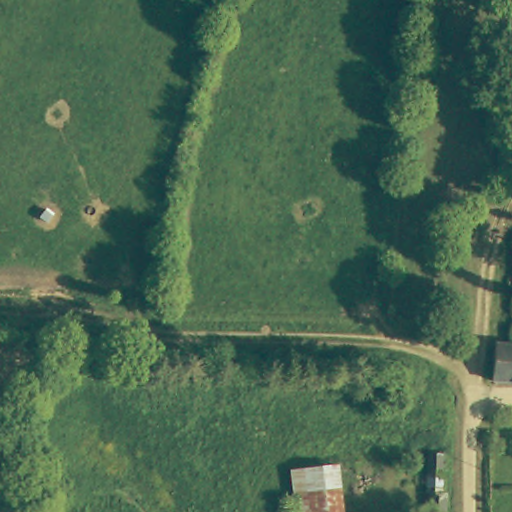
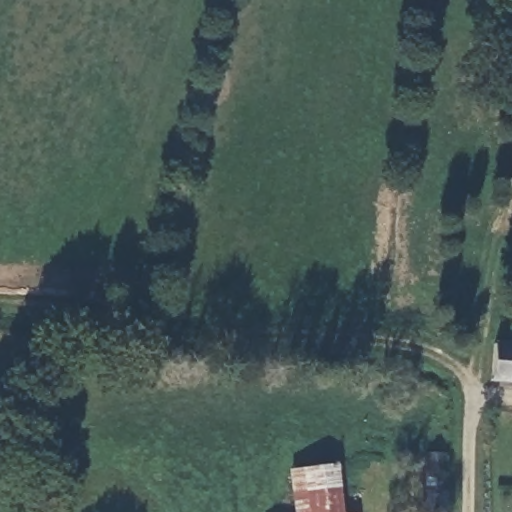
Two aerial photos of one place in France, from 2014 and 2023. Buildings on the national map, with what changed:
unchanged [(480,385),(481,352),(498,353),(502,353),(512,353),(512,386),(480,385)]
unchanged [(432,472),(431,460),(450,460),(451,472),(451,486),(451,512),(432,512),(432,486),(432,472)]
unchanged [(332,512),(288,512),(286,472),(330,469),(332,512)]

